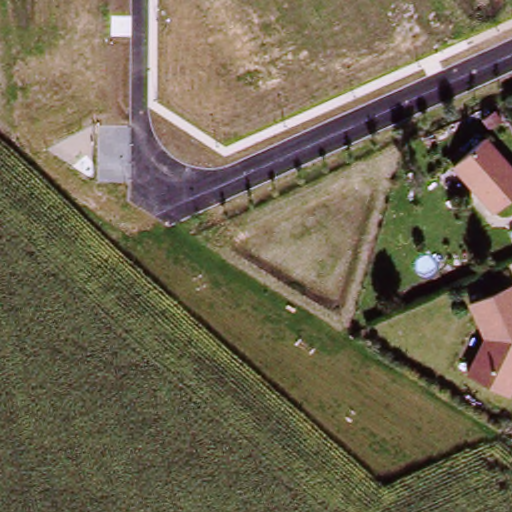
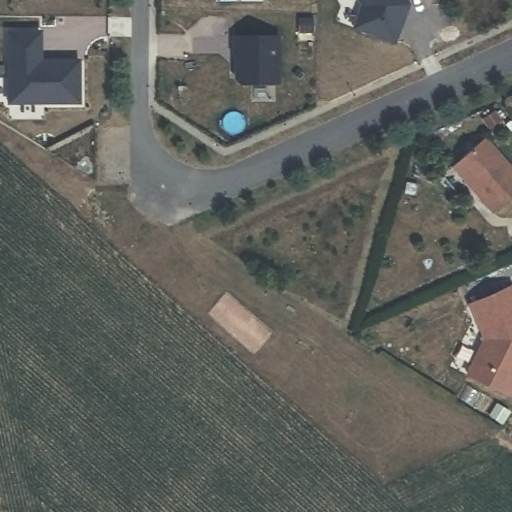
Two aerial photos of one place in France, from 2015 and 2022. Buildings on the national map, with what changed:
new [(394,39),(352,24),(361,1),(360,0),(407,0),(394,39)]
new [(39,30),(39,59),(77,59),(77,100),(8,101),(7,30),(39,30)]
new [(233,34),(278,34),(278,80),(241,80),(236,76),(236,51),(233,50),(233,34)]
unchanged [(480,135),(512,172),(512,189),(488,210),(447,163),(480,135)]
unchanged [(512,301),(512,380),(502,399),(461,379),(480,342),(465,308),(507,289),(512,301)]

